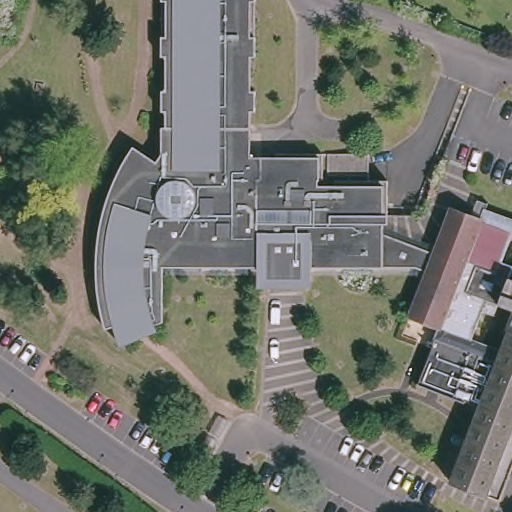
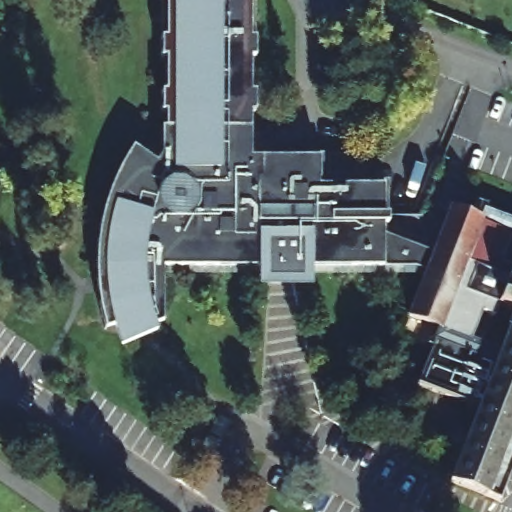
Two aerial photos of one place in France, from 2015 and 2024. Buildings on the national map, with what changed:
unchanged [(366,181),(383,181),(383,187),(383,216),(386,216),(387,223),(435,245),(448,207),(469,215),(475,200),(487,204),(485,210),(512,218),(512,467),(499,501),(487,496),(448,482),(477,406),(416,385),(437,331),(405,315),(424,269),(380,267),(310,267),(310,288),(255,287),(256,268),(161,267),(160,322),(153,326),(156,331),(119,346),(112,326),(103,328),(97,300),(94,273),(95,247),(102,209),(115,176),(132,147),(155,162),(161,154),(160,129),(165,129),(165,112),(160,112),(160,92),(165,91),(165,58),(160,58),(160,37),(165,37),(165,2),(160,1),(160,0),(253,0),(253,2),(248,2),(248,39),(255,39),(254,56),(249,56),(248,92),(255,93),(255,111),(248,112),(248,158),(318,157),(366,154),(366,181)]

